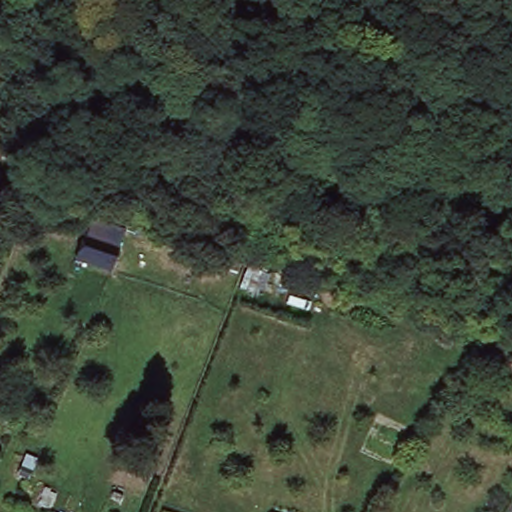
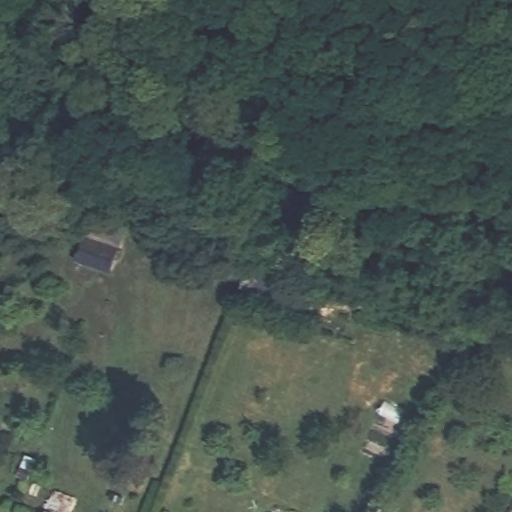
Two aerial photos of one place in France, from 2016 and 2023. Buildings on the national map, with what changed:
unchanged [(86,233),(124,245),(114,279),(74,265),(86,233)]

